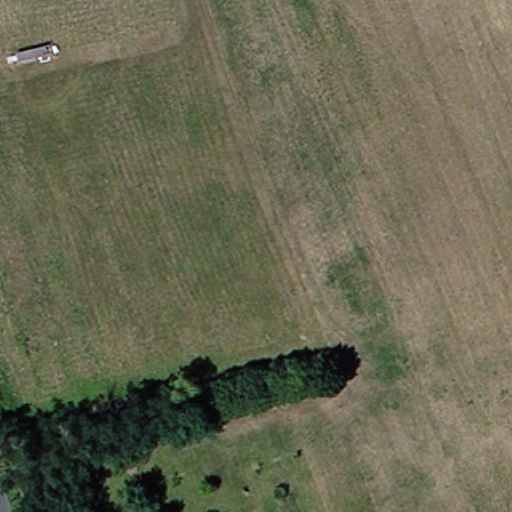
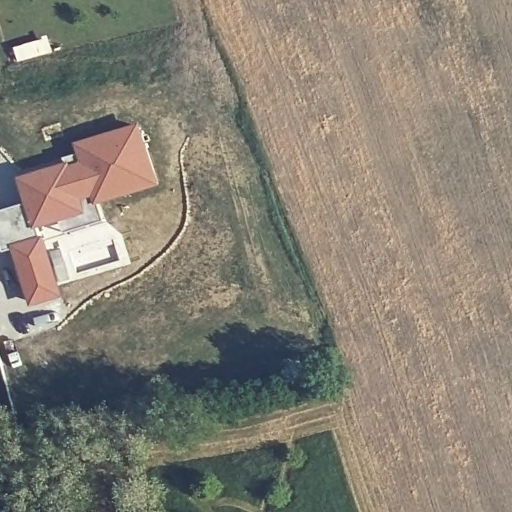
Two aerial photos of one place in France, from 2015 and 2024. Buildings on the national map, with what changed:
new [(73,164),(74,168),(90,163),(84,144),(142,126),(156,170),(159,179),(124,190),(101,197),(100,197),(97,189),(81,194),(86,210),(41,224),(46,239),(8,251),(0,226),(0,212),(34,201),(26,179),(73,164)]
new [(86,152),(90,163),(74,168),(73,164),(71,165),(69,157),(86,152)]
new [(86,210),(81,194),(97,189),(100,197),(101,197),(108,220),(68,232),(63,217),(86,210)]
new [(14,249),(46,239),(62,297),(31,306),(14,249)]

